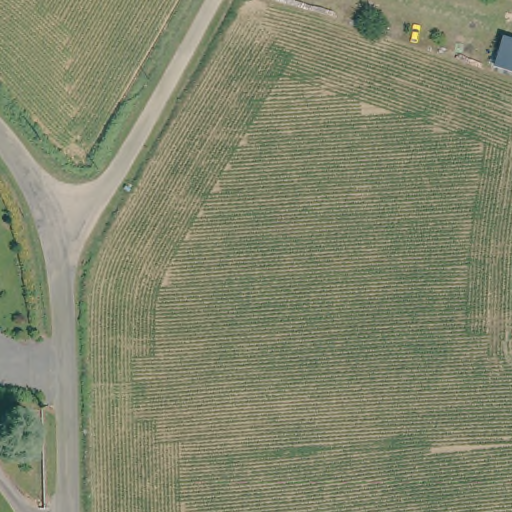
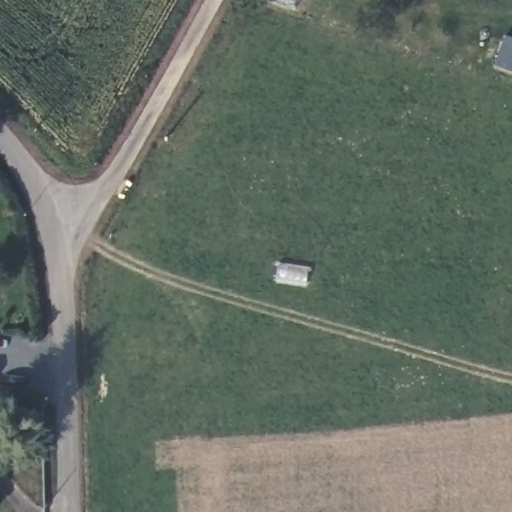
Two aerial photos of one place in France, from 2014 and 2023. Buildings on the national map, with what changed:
unchanged [(512,20),(512,47),(498,42),(506,18),(512,20)]

